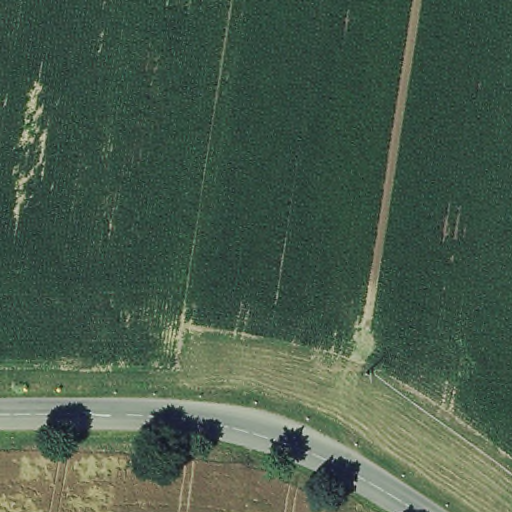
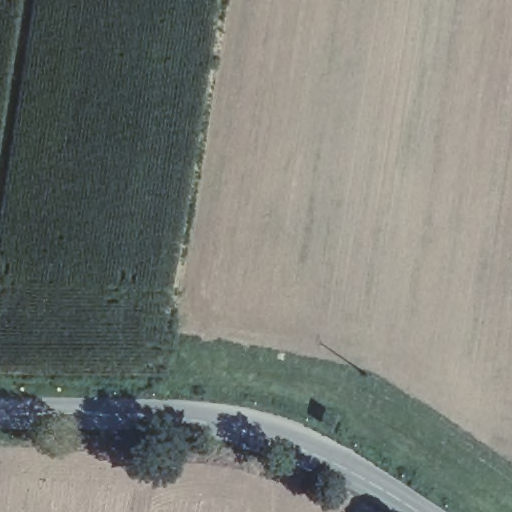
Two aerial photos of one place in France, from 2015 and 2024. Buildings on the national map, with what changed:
[]

